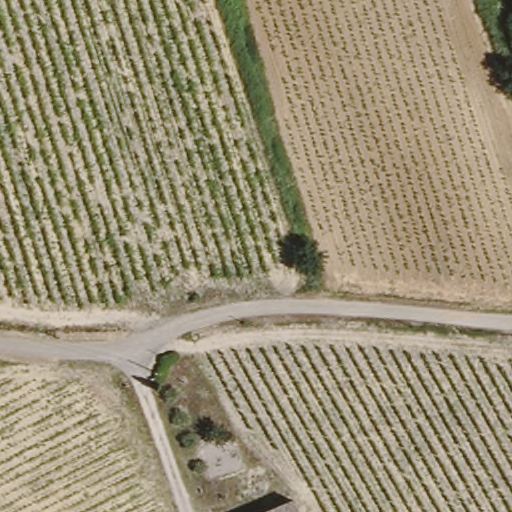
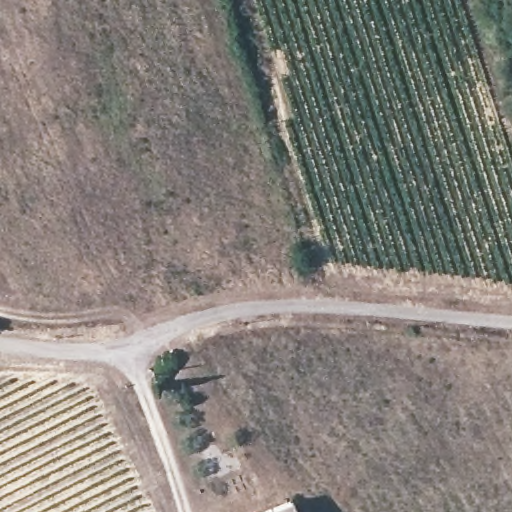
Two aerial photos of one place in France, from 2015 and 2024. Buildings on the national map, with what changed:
unchanged [(295,512),(264,512),(291,502),(295,512)]

